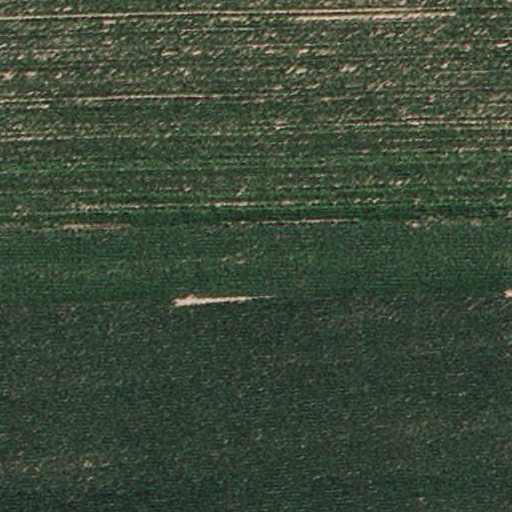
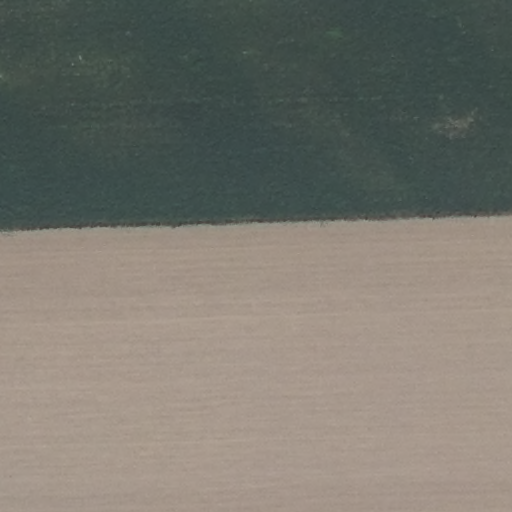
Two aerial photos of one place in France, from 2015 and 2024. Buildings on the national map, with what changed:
[]

